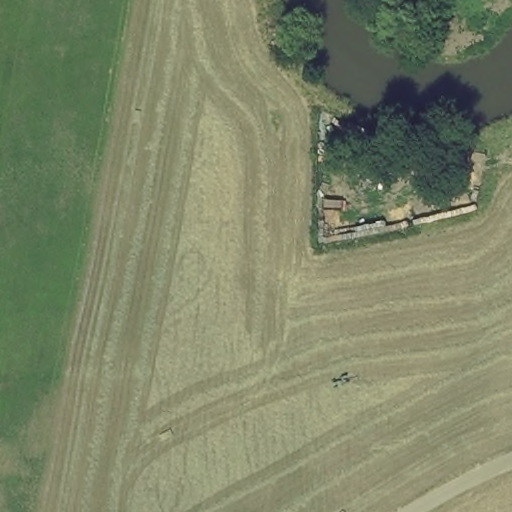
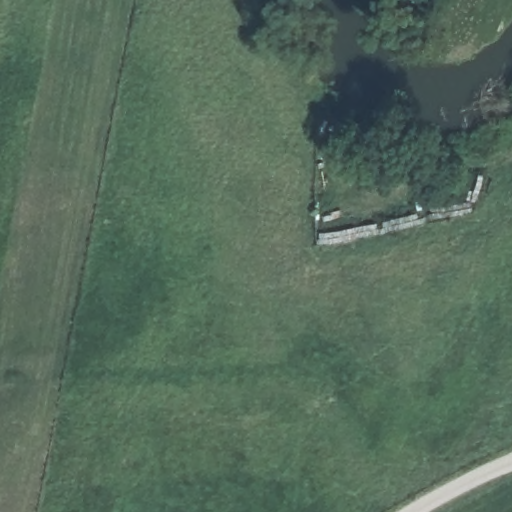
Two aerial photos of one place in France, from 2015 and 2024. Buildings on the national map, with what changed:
unchanged [(359,179),(393,139),(412,153),(373,194),(359,179)]

